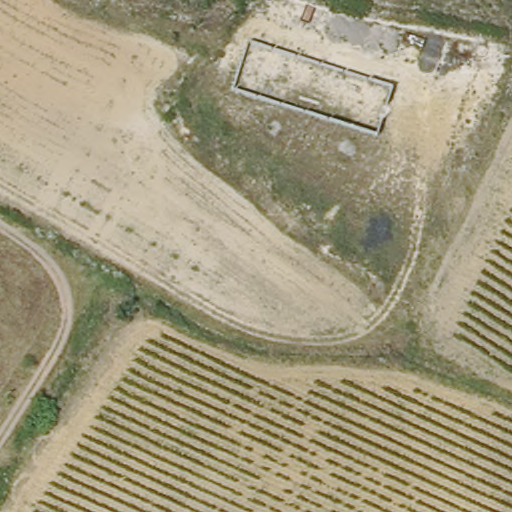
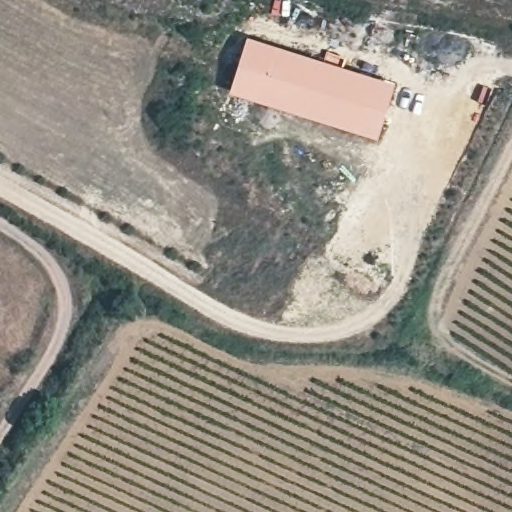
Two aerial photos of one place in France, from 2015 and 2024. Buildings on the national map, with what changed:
new [(396,84),(379,140),(230,93),(246,38),(396,84)]

